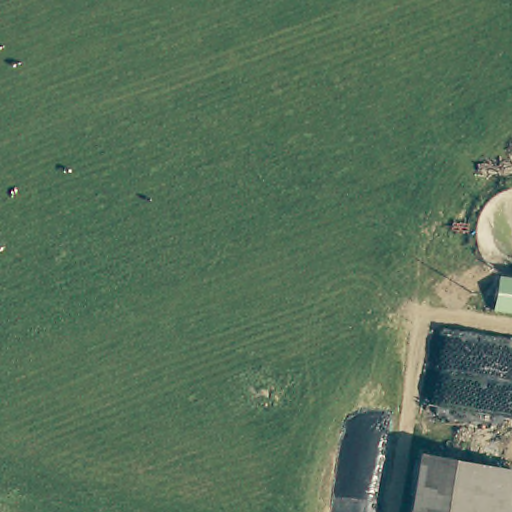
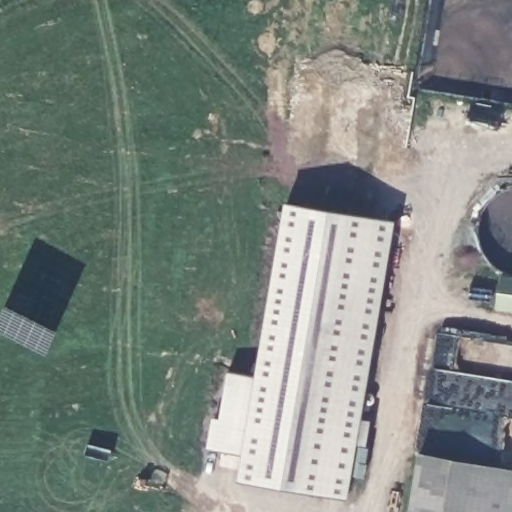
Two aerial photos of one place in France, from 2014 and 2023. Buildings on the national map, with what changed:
new [(284,202),(395,221),(361,419),(371,421),(366,447),(356,446),(347,499),(238,482),(284,202)]
unchanged [(510,471),(504,512),(420,512),(429,458),(510,471)]

